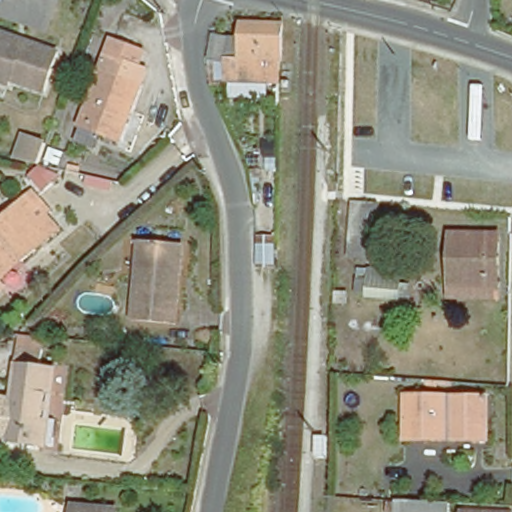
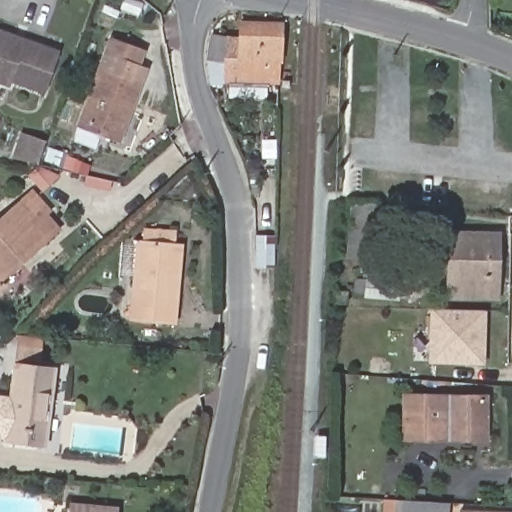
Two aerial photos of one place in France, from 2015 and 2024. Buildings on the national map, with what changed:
unchanged [(242,15),(282,16),(282,53),(278,53),(278,74),(249,74),(248,71),(227,71),(227,75),(212,75),(209,54),(213,27),(237,30),(241,30),(242,15)]
unchanged [(45,92),(12,81),(11,85),(0,82),(0,33),(58,53),(45,92)]
unchanged [(113,37),(145,48),(139,65),(145,67),(119,139),(81,125),(113,37)]
unchanged [(41,159),(40,161),(22,157),(16,155),(24,133),(30,135),(48,141),(41,159)]
unchanged [(34,194),(53,214),(46,219),(59,233),(22,266),(0,285),(0,225),(34,194)]
unchanged [(348,250),(353,196),(379,198),(375,252),(348,250)]
unchanged [(255,267),(258,223),(279,223),(275,264),(255,267)]
unchanged [(452,294),(452,234),(498,234),(498,294),(452,294)]
unchanged [(131,313),(138,235),(183,239),(177,317),(131,313)]
unchanged [(392,293),(361,291),(361,287),(352,286),(353,265),(364,266),(364,263),(394,265),(393,279),(403,279),(403,290),(392,289),(392,293)]
new [(432,360),(433,310),(484,311),(482,362),(432,360)]
unchanged [(12,399),(18,345),(41,347),(39,363),(56,365),(46,445),(7,441),(8,434),(0,433),(0,398),(12,399)]
unchanged [(451,441),(451,431),(406,430),(407,389),(485,392),(484,432),(484,442),(451,441)]
unchanged [(444,496),(443,512),(396,512),(397,494),(444,496)]
unchanged [(117,503),(116,512),(72,512),(73,499),(117,503)]
unchanged [(512,507),(512,512),(462,512),(463,504),(512,507)]

